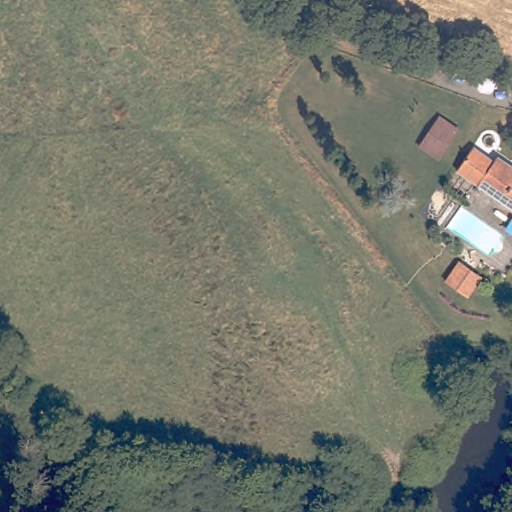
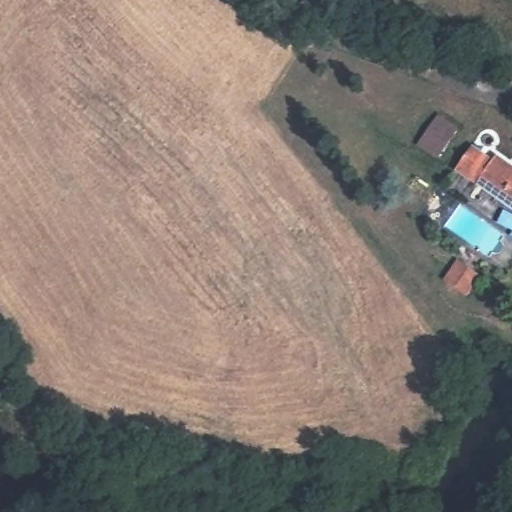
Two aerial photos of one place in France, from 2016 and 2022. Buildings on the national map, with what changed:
unchanged [(419,145),(439,117),(457,128),(437,157),(419,145)]
unchanged [(472,147),(492,161),(495,157),(512,168),(512,210),(456,171),(472,147)]

